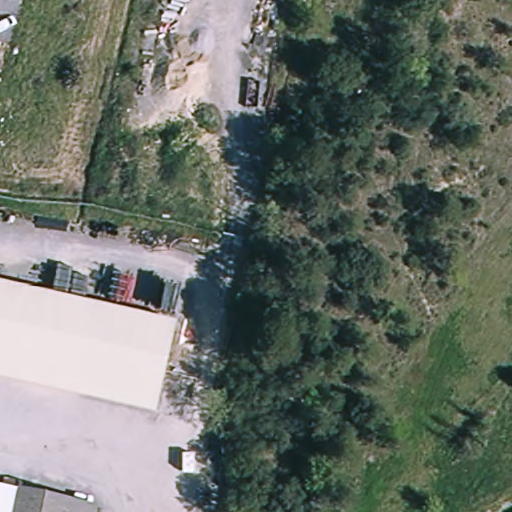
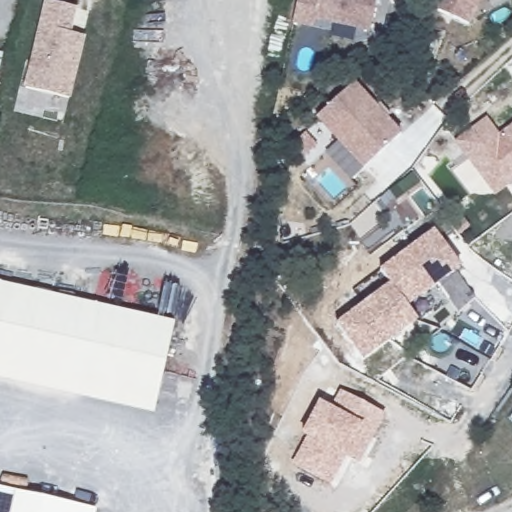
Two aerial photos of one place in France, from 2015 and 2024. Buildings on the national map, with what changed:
new [(380,0),(373,31),(322,19),(320,26),(296,20),(300,0),(380,0)]
new [(435,7),(438,0),(481,0),(470,24),(435,7)]
new [(71,34),(85,37),(70,99),(23,87),(44,1),(78,8),(71,34)]
new [(378,107),(382,103),(392,115),(388,119),(402,135),(363,169),(316,115),(356,82),(378,107)]
new [(469,158),(456,140),(487,117),(500,135),(512,126),(512,185),(511,183),(494,194),(469,158)]
new [(434,229),(462,266),(407,307),(416,321),(361,360),(336,325),(391,285),(379,270),(434,229)]
unchanged [(0,358),(0,277),(109,306),(89,382),(0,358)]
unchanged [(176,324),(156,399),(89,382),(109,306),(176,324)]
unchanged [(0,377),(0,358),(89,382),(156,399),(151,417),(0,377)]
new [(292,465),(306,437),(301,435),(319,400),(333,408),(341,391),(386,415),(359,464),(345,457),(330,485),(292,465)]
unchanged [(0,490),(86,512),(0,512),(0,490)]

